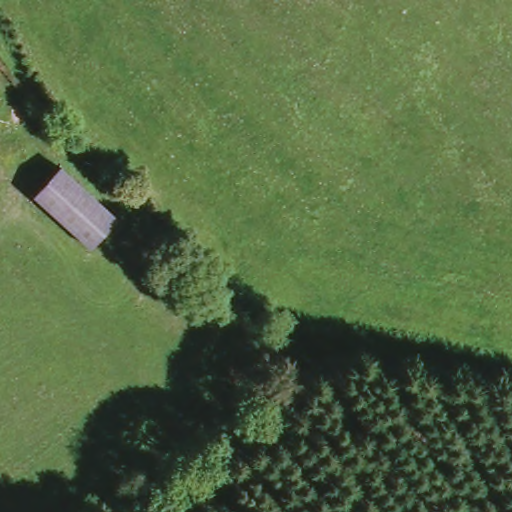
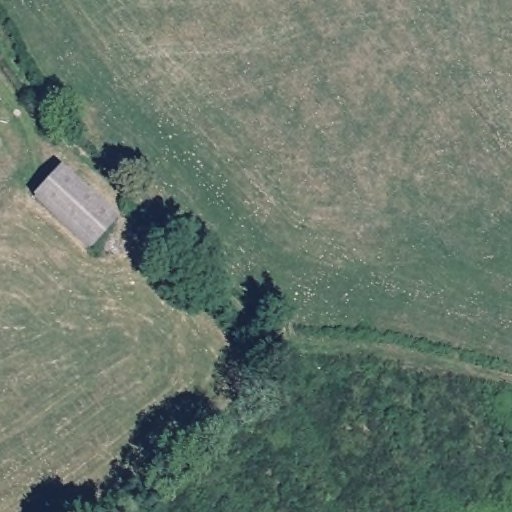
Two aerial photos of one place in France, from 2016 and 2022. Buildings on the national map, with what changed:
unchanged [(122,222),(99,249),(42,197),(68,170),(122,222)]

